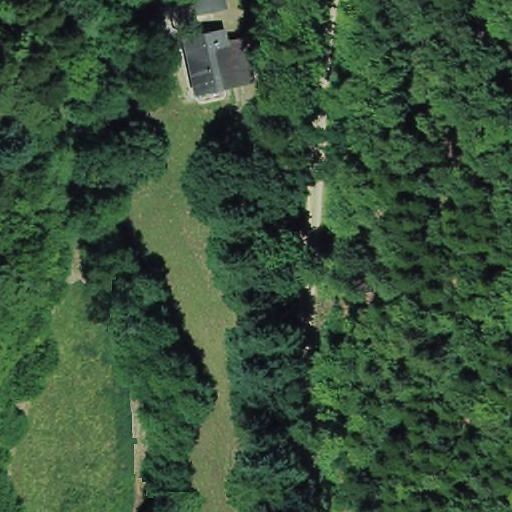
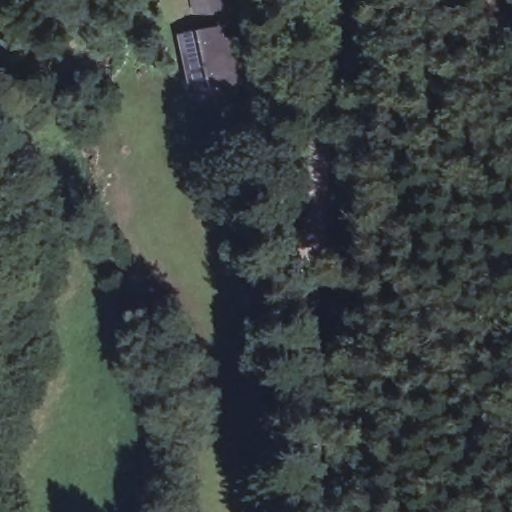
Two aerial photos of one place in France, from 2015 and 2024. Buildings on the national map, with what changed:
unchanged [(234,85),(191,94),(171,32),(218,22),(234,85)]
unchanged [(254,337),(252,321),(274,317),(276,333),(254,337)]

